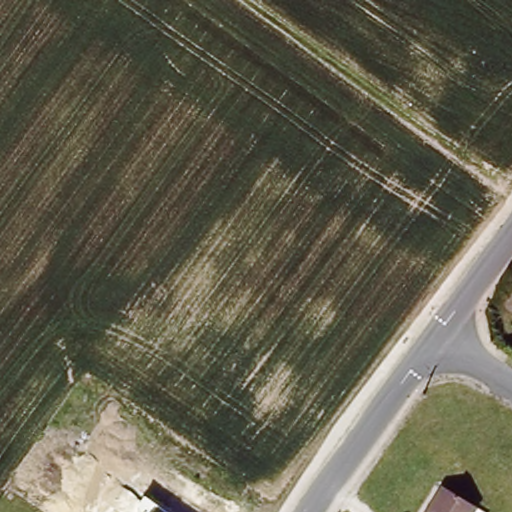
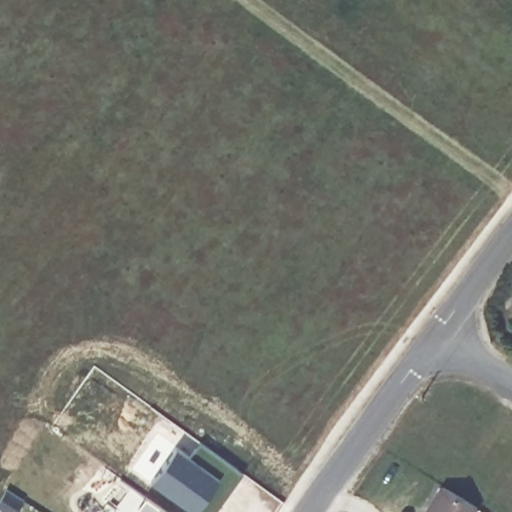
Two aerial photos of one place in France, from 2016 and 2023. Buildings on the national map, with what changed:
new [(214,512),(193,512),(192,511),(150,481),(176,445),(190,455),(199,440),(242,473),(214,512)]
unchanged [(477,508),(475,512),(428,512),(443,487),(477,508)]
new [(25,500),(16,512),(5,512),(0,509),(0,497),(6,488),(25,500)]
unchanged [(138,508),(145,495),(167,512),(138,512),(138,508)]

